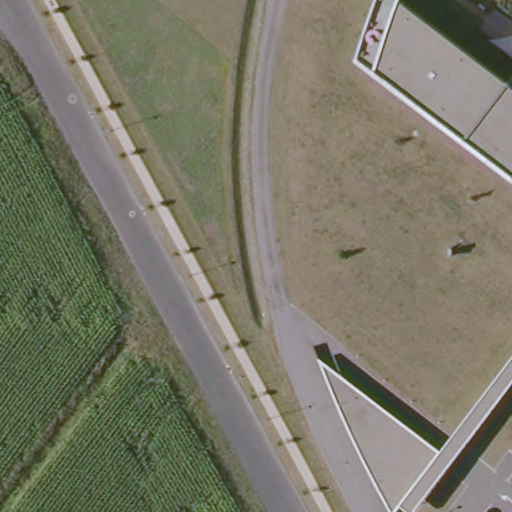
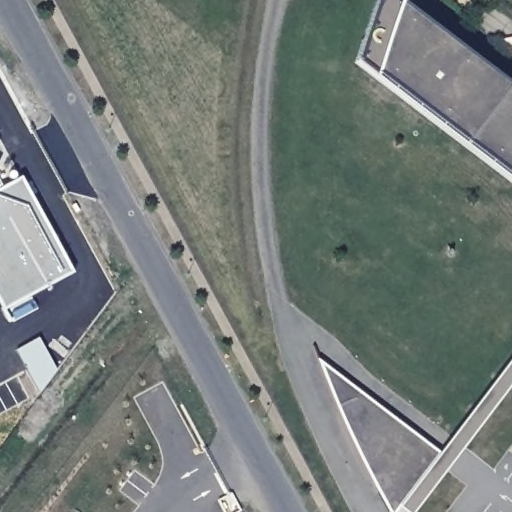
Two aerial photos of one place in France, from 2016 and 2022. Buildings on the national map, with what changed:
unchanged [(374,0),(397,0),(398,1),(508,84),(512,78),(512,184),(372,79),(354,62),(374,0)]
new [(27,179),(75,270),(2,309),(0,306),(0,190),(27,179)]
unchanged [(406,512),(396,506),(391,512),(388,512),(350,437),(316,357),(438,451),(512,355),(512,380),(411,512),(406,512)]

